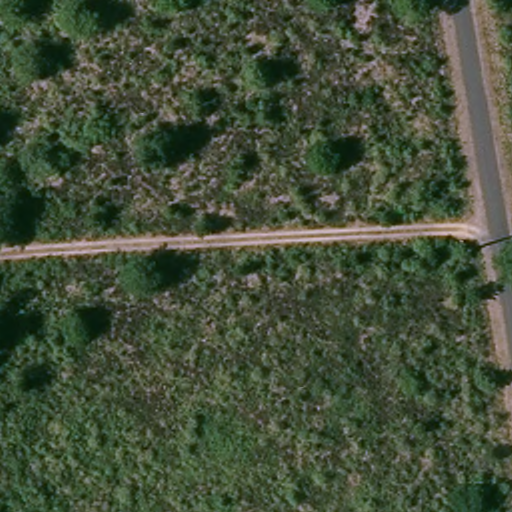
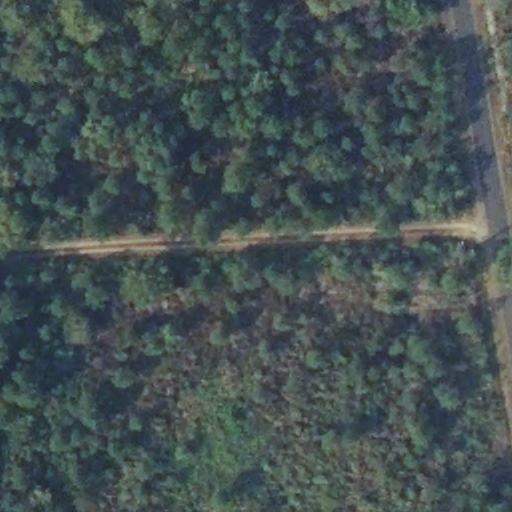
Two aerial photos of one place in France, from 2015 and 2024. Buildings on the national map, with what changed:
[]

